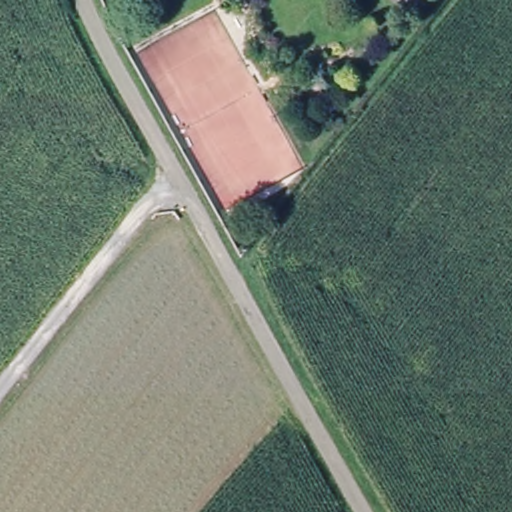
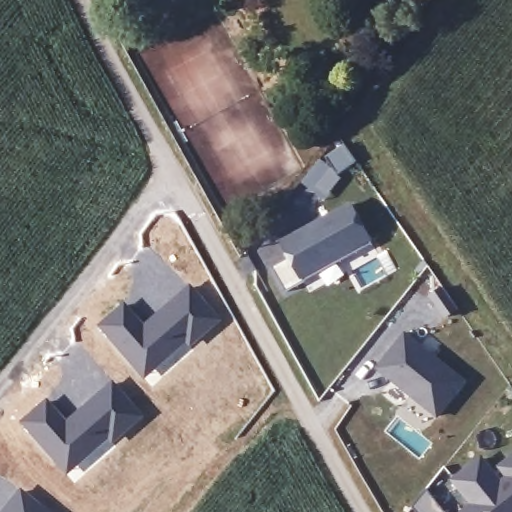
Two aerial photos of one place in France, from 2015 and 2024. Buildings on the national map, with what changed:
new [(283,238),(351,201),(371,235),(373,240),(306,277),(287,288),(273,263),(291,253),(283,238)]
new [(120,301),(142,322),(186,283),(220,321),(160,377),(154,371),(144,381),(94,326),(120,301)]
new [(445,286),(458,307),(446,316),(432,295),(445,286)]
new [(405,329),(466,376),(439,411),(411,388),(412,387),(380,362),(405,329)]
new [(44,397),(65,418),(110,380),(143,416),(104,453),(81,472),(76,467),(65,476),(16,422),(44,397)]
new [(465,507),(476,500),(455,474),(482,452),(502,478),(511,471),(502,461),(512,452),(512,512),(456,512),(464,506),(465,507)]
new [(427,482),(440,499),(451,512),(422,512),(412,501),(427,482)]
new [(49,512),(0,512),(0,510),(18,488),(49,512)]

